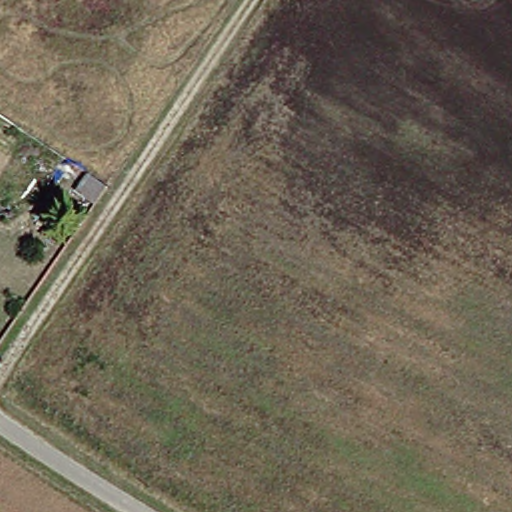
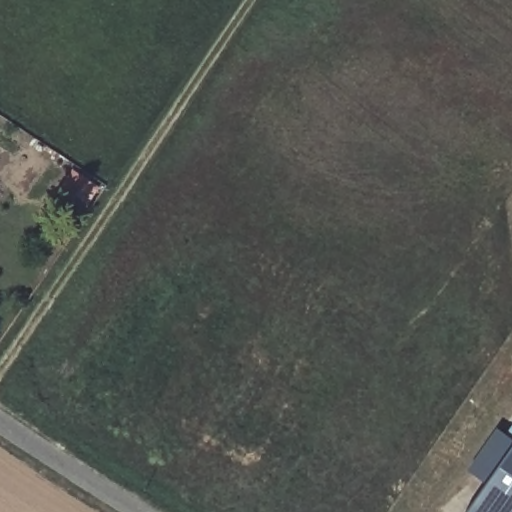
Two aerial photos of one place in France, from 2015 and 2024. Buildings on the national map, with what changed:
new [(490,483),(469,469),(501,426),(512,433),(512,512),(469,512),(490,483)]

